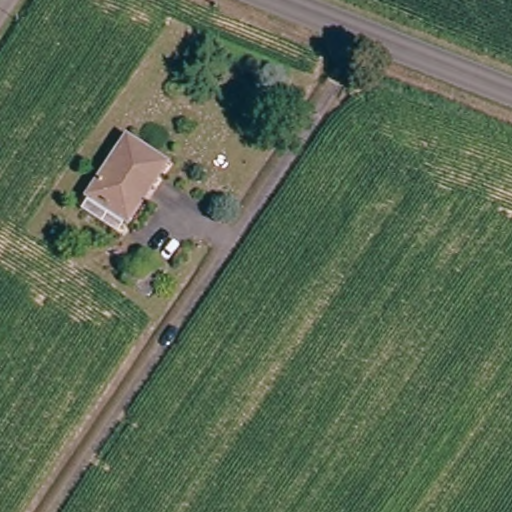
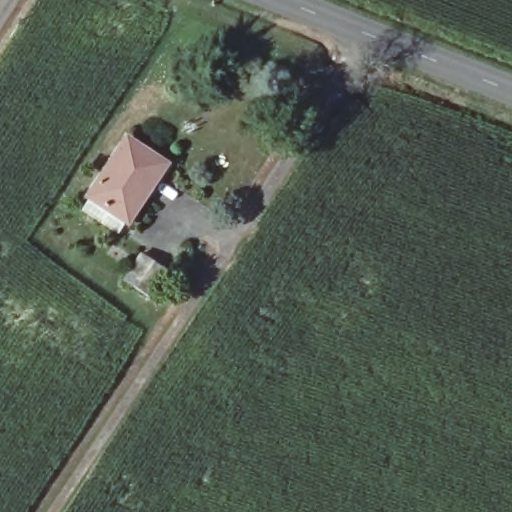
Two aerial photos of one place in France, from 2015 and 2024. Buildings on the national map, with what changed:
unchanged [(128,140),(164,164),(127,220),(91,196),(128,140)]
unchanged [(127,279),(140,257),(161,270),(148,292),(127,279)]

